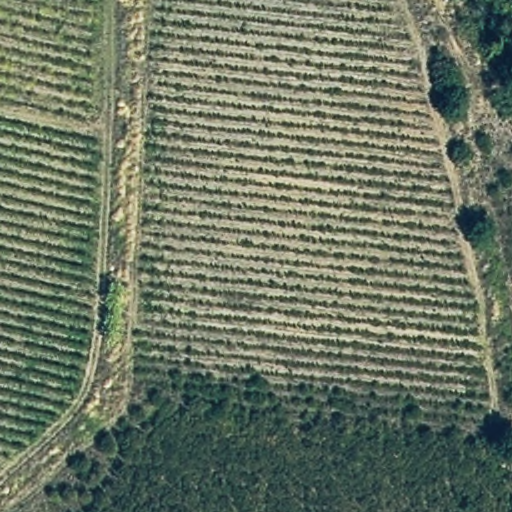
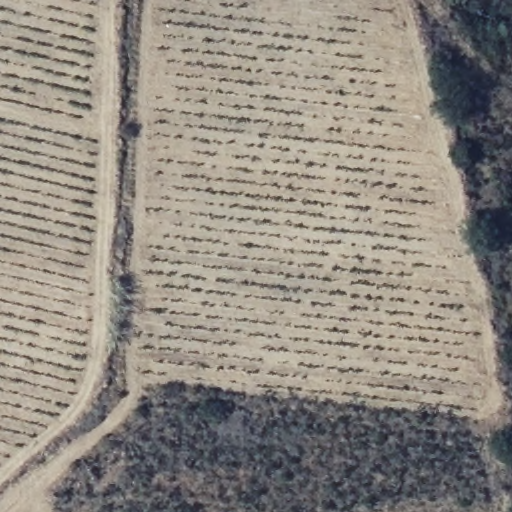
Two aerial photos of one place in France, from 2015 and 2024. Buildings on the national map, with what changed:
[]

